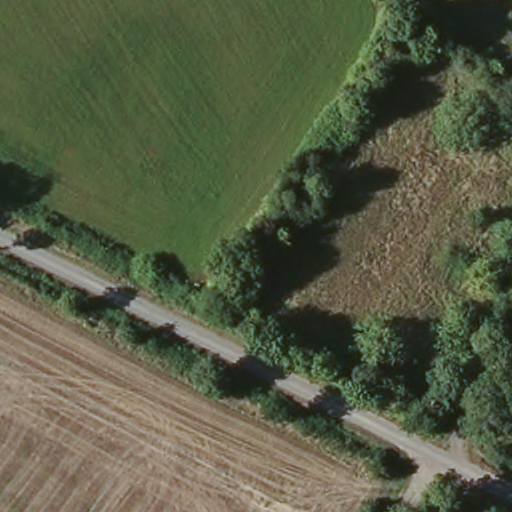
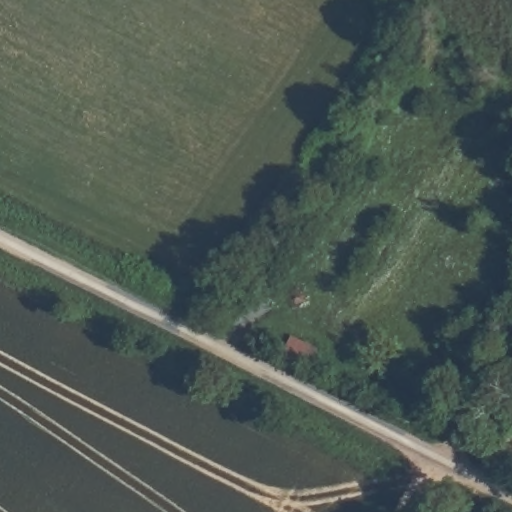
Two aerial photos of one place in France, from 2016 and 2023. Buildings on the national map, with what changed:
unchanged [(319,343),(312,360),(285,349),(293,332),(319,343)]

